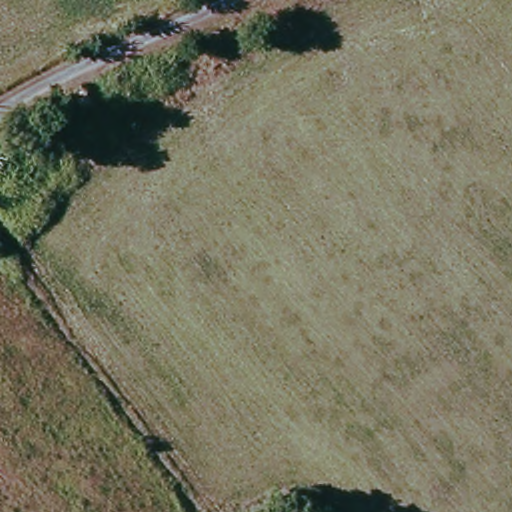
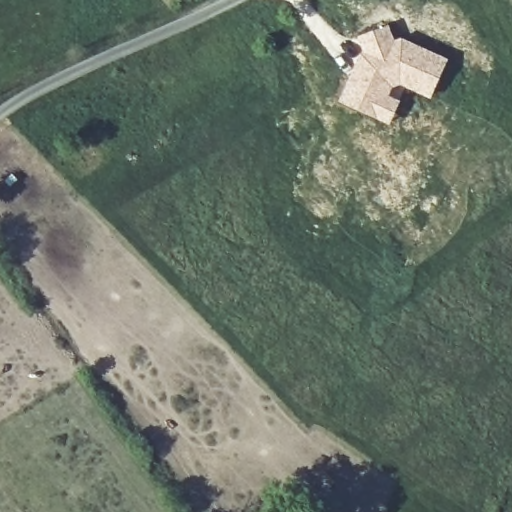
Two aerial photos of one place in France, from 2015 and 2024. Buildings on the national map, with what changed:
new [(360,51),(360,47),(355,38),(389,24),(395,38),(399,37),(404,38),(449,59),(431,99),(406,88),(390,125),(338,101),(360,51)]

